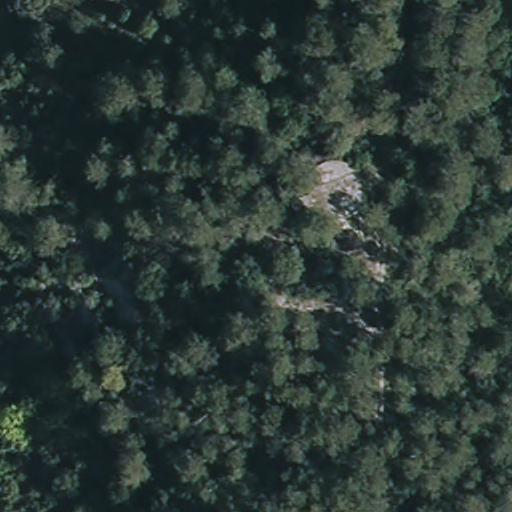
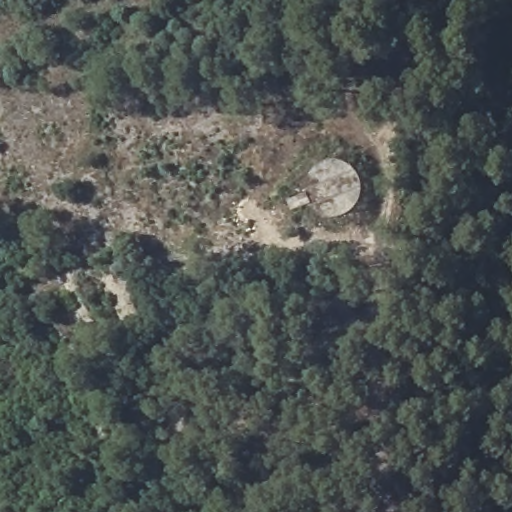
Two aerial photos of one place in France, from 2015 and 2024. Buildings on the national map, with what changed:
[]

